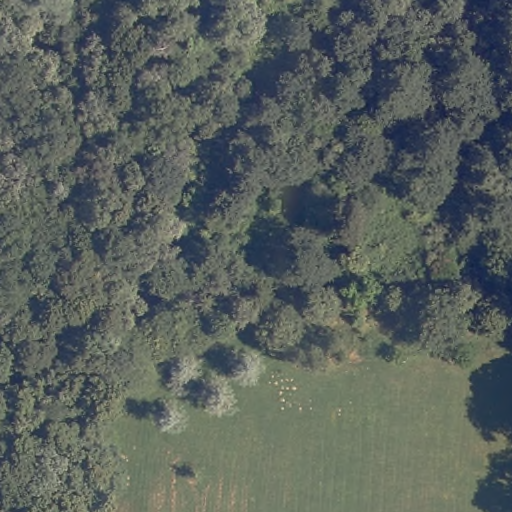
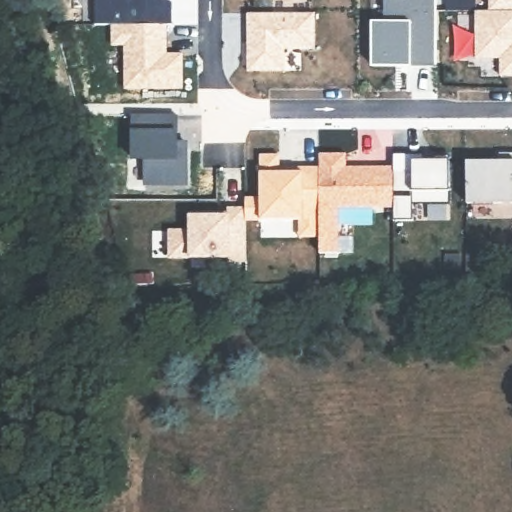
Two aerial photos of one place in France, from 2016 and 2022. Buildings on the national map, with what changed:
new [(94,24),(94,0),(162,0),(162,2),(171,3),(171,25),(167,25),(108,24),(94,24)]
new [(381,0),(435,0),(436,68),(410,68),(369,68),(369,21),(380,21),(381,0)]
new [(472,59),(472,9),(487,9),(487,0),(512,0),(512,76),(498,77),(495,59),(472,59)]
new [(246,14),(315,13),(315,49),(283,50),(284,71),(246,72),(246,14)]
new [(123,90),(122,47),(109,47),(108,24),(167,25),(167,55),(181,56),(182,90),(123,90)]
new [(141,161),(132,162),(131,131),(130,115),(177,115),(174,130),(177,130),(177,142),(186,141),(187,185),(143,186),(141,161)]
new [(496,153),(512,153),(512,205),(465,205),(464,162),(495,160),(496,153)]
new [(187,230),(187,215),(224,214),(224,207),(245,207),(245,198),(258,198),(258,156),(277,155),(278,167),(318,167),(318,154),(345,154),(345,167),(393,166),(393,155),(447,155),(445,160),(449,160),(449,191),(446,191),(449,204),(411,204),(411,221),(391,220),(391,208),(339,209),(340,253),(318,254),(318,237),(299,237),(299,221),(245,221),(245,256),(230,256),(230,260),(188,260),(167,260),(167,228),(187,230)]

